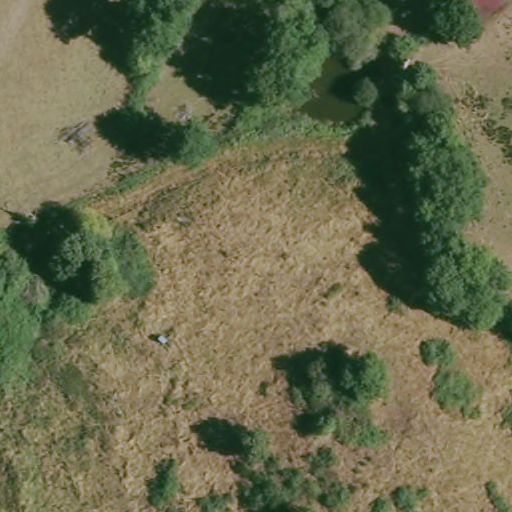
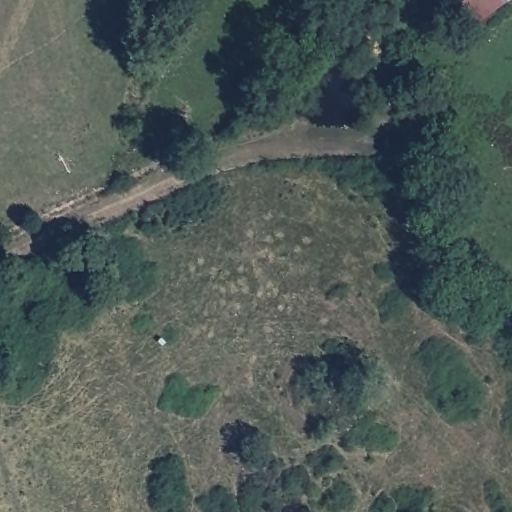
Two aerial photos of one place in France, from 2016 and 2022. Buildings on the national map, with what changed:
unchanged [(454,4),(459,0),(506,0),(469,25),(454,4)]

